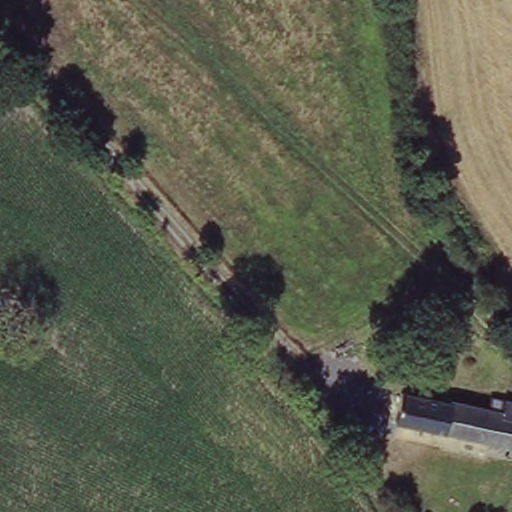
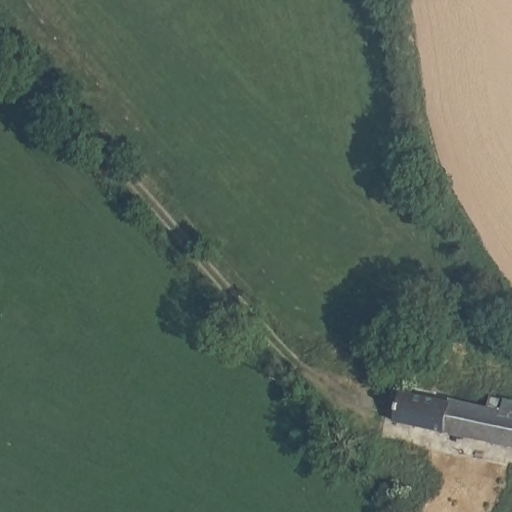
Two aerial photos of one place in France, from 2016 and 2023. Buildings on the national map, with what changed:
unchanged [(480,411),(483,399),(512,408),(512,456),(506,454),(388,421),(399,388),(480,411)]

